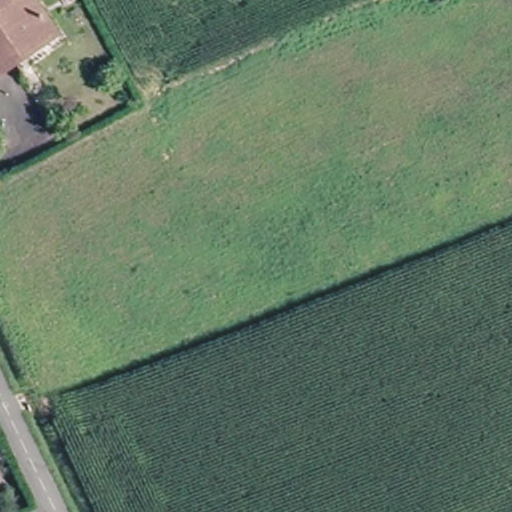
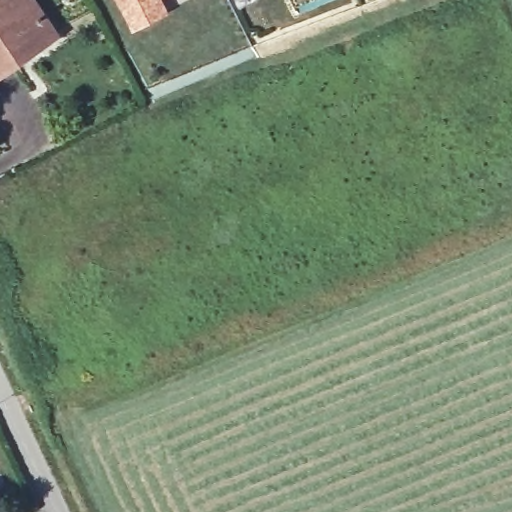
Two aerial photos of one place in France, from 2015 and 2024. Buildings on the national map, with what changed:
unchanged [(0,0),(34,0),(55,34),(28,51),(7,65),(0,69),(0,0)]
new [(132,30),(118,0),(164,0),(170,13),(132,30)]

